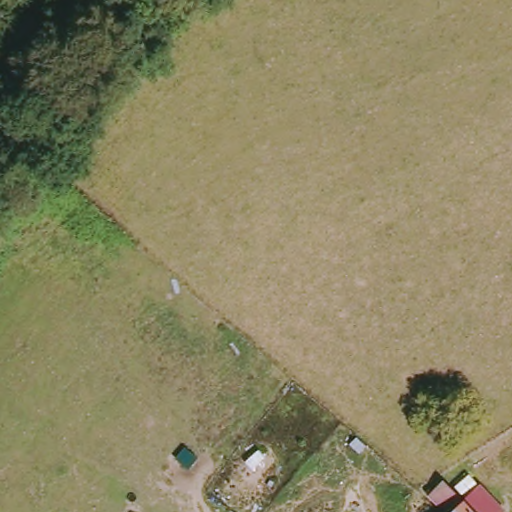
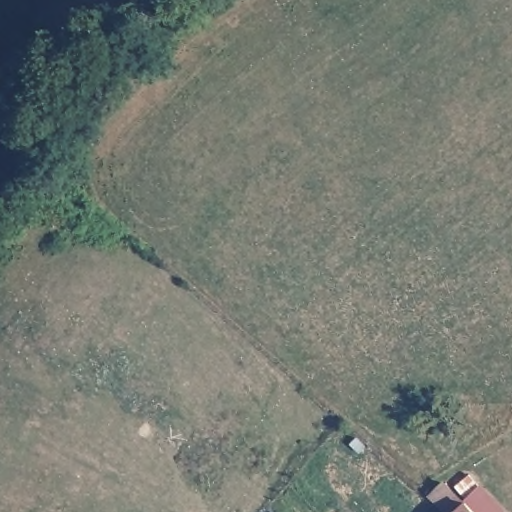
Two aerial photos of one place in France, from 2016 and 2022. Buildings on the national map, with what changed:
unchanged [(467,475),(477,482),(469,491),(460,483),(467,475)]
unchanged [(471,498),(484,486),(506,511),(505,512),(453,512),(431,492),(448,480),(467,499),(470,496),(471,498)]

